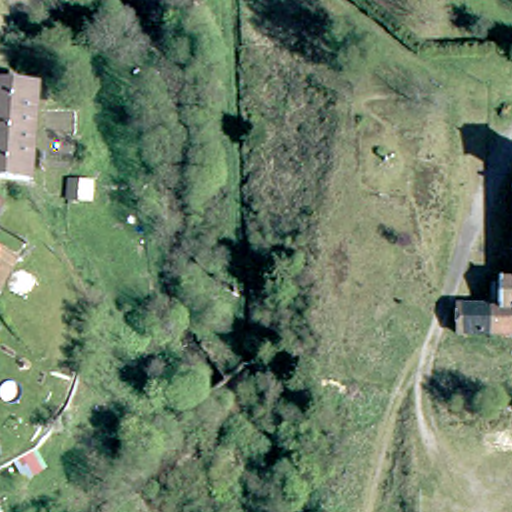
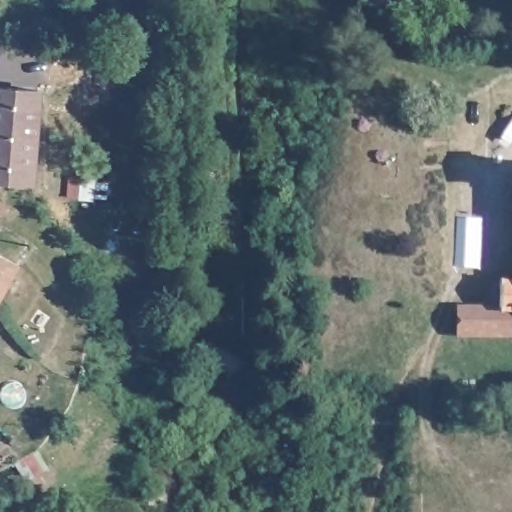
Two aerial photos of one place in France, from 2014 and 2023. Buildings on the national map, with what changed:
unchanged [(25,176),(0,174),(0,81),(33,83),(25,176)]
unchanged [(97,181),(95,200),(78,198),(82,179),(97,181)]
unchanged [(0,292),(0,255),(16,264),(0,292)]
unchanged [(462,340),(462,312),(504,313),(505,286),(512,286),(512,341),(462,340)]

